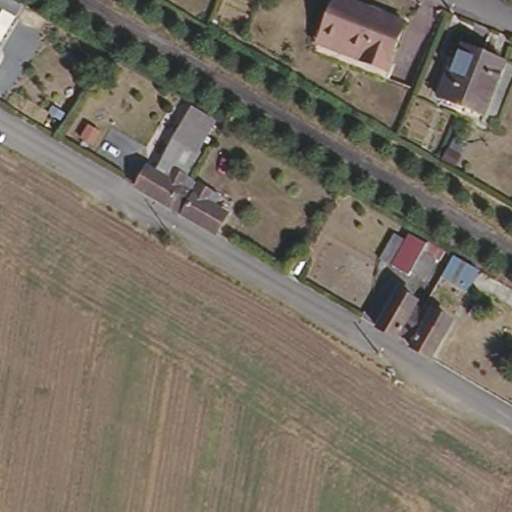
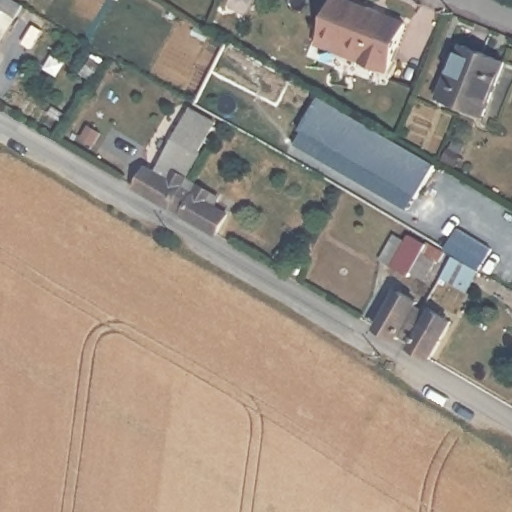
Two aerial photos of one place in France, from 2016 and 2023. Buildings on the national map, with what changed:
unchanged [(321,31),(332,0),(358,0),(407,17),(388,66),(362,55),(318,39),(321,31)]
unchanged [(451,66),(457,67),(466,42),(507,56),(487,110),(440,94),(451,66)]
new [(291,142),(317,97),(432,165),(406,208),(291,142)]
unchanged [(218,115),(202,146),(178,133),(196,102),(218,115)]
unchanged [(174,207),(167,203),(134,184),(145,165),(159,172),(164,164),(189,180),(177,200),(174,207)]
unchanged [(174,207),(177,200),(189,180),(217,195),(212,203),(225,211),(214,230),(181,211),(174,207)]
new [(460,227),(494,247),(482,268),(448,248),(460,227)]
unchanged [(423,243),(438,253),(434,260),(432,258),(420,278),(408,271),(405,275),(382,262),(373,258),(387,233),(395,238),(399,232),(422,245),(423,243)]
unchanged [(448,256),(472,269),(462,284),(460,290),(435,276),(438,270),(440,271),(448,256)]
unchanged [(400,329),(396,336),(377,324),(398,288),(416,299),(415,303),(422,307),(407,333),(400,329)]
unchanged [(414,337),(407,333),(422,307),(428,311),(432,307),(450,318),(428,354),(410,344),(414,337)]

